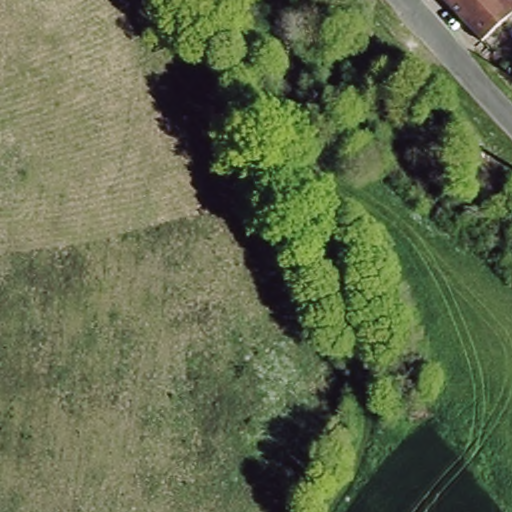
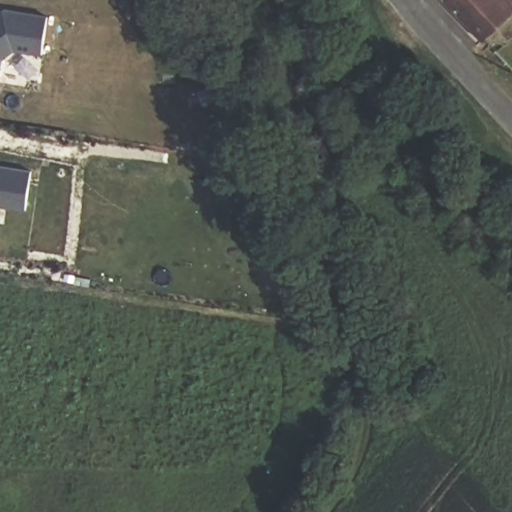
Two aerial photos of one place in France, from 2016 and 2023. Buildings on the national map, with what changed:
unchanged [(446,0),(512,0),(512,12),(481,39),(446,0)]
new [(2,11),(45,17),(40,55),(14,51),(0,59),(0,12),(2,11)]
new [(34,171),(28,209),(0,205),(0,165),(34,171)]

